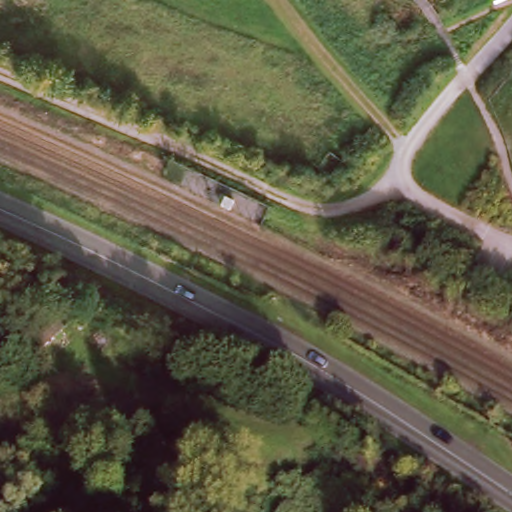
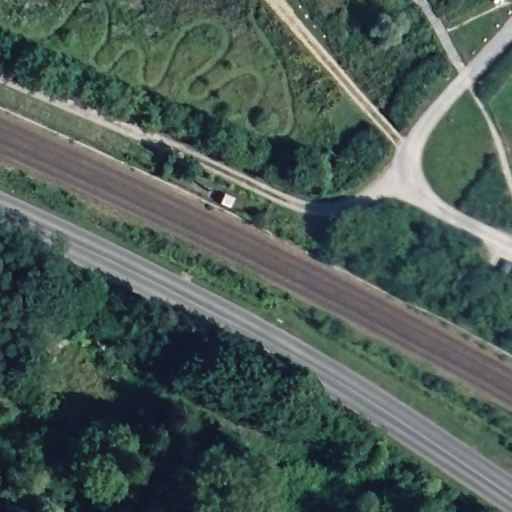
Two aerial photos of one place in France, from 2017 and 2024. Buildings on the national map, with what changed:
unchanged [(34,335),(52,320),(67,337),(50,353),(34,335)]

